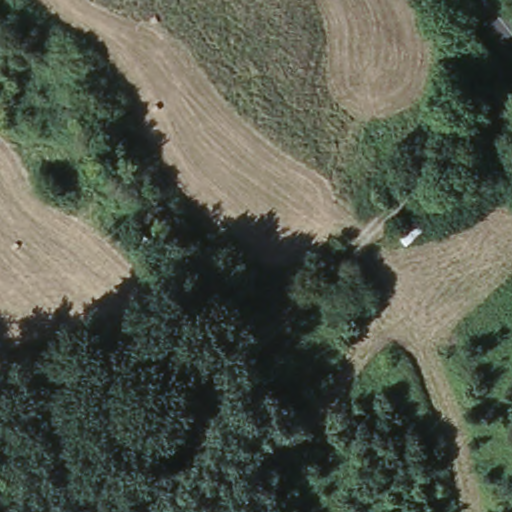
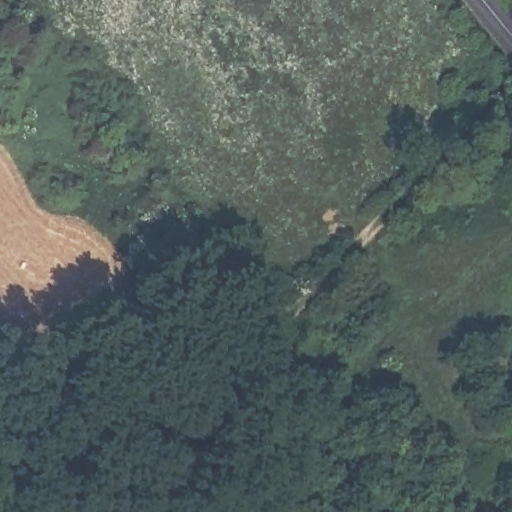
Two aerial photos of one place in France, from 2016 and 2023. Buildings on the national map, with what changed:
unchanged [(156,251),(141,263),(124,236),(139,225),(156,251)]

